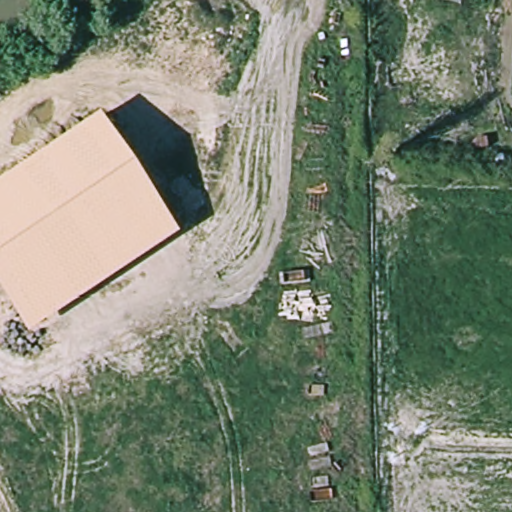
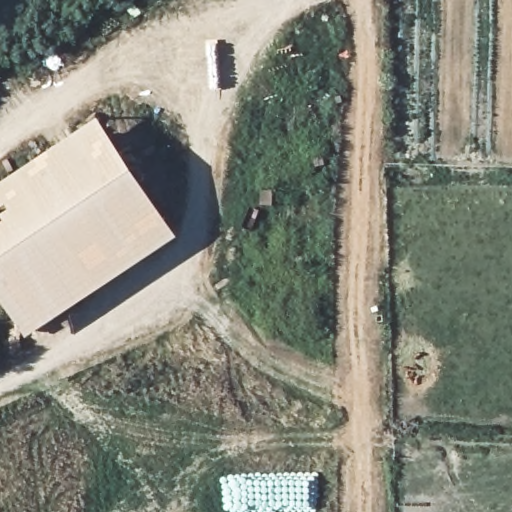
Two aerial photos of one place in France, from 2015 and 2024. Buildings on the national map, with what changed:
unchanged [(28,335),(0,294),(0,183),(99,115),(178,236),(28,335)]

